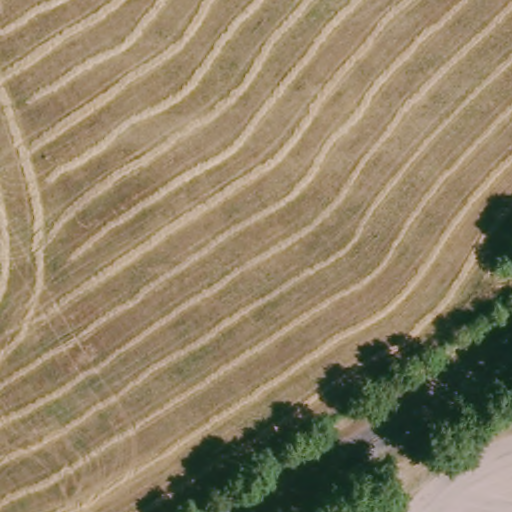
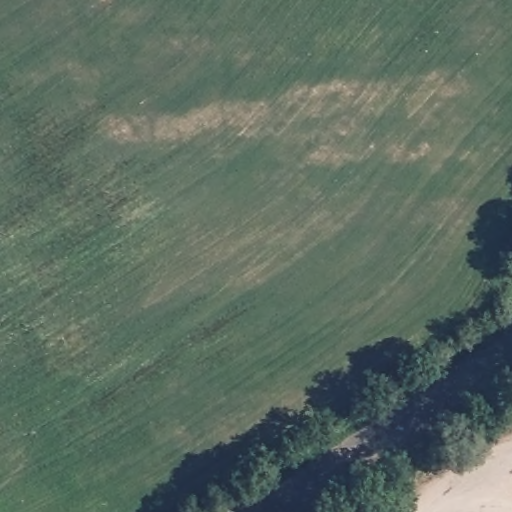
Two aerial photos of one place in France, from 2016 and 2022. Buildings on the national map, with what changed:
[]

